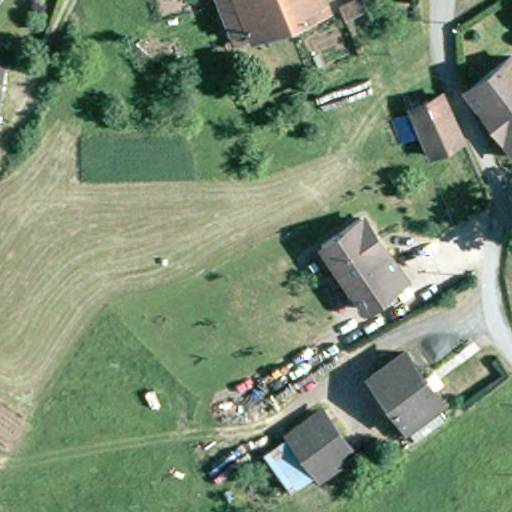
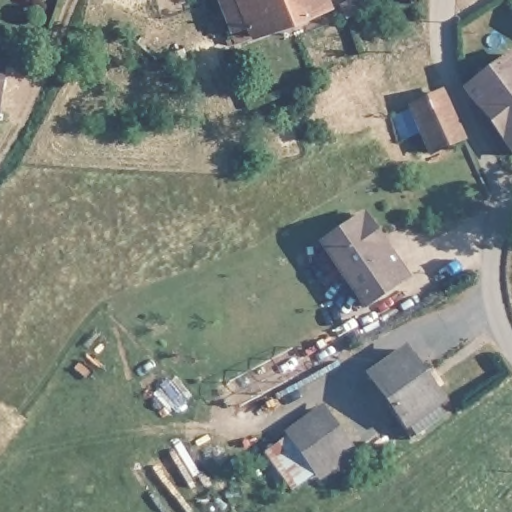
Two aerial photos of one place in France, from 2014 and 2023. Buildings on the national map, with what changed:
unchanged [(321,0),(325,10),(247,35),(229,40),(227,40),(214,0),(321,0)]
unchanged [(341,25),(335,9),(357,0),(363,16),(341,25)]
unchanged [(512,62),(512,149),(461,89),(504,53),(512,62)]
unchanged [(402,106),(434,92),(459,140),(429,155),(402,106)]
unchanged [(383,246),(401,270),(399,278),(362,302),(318,239),(355,213),(381,249),(383,246)]
unchanged [(415,442),(405,427),(368,375),(402,350),(439,403),(434,406),(444,420),(415,442)]
unchanged [(320,410),(349,451),(317,475),(287,435),(320,410)]
unchanged [(291,493),(262,454),(287,435),(317,475),(291,493)]

